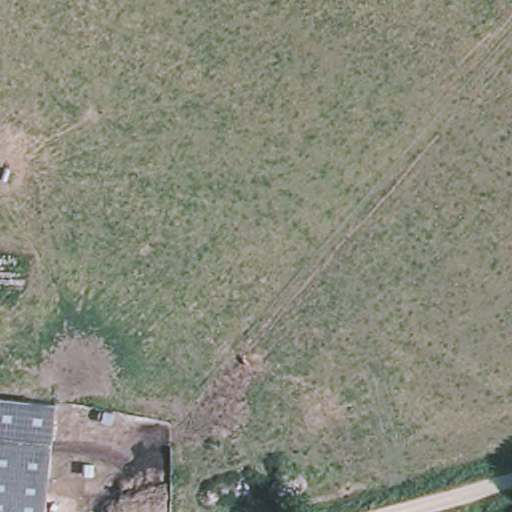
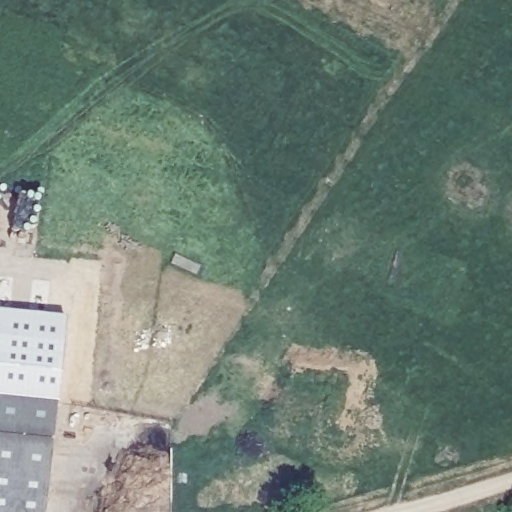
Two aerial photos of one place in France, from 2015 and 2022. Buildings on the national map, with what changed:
new [(0,403),(0,309),(68,315),(57,410),(0,403)]
unchanged [(0,420),(0,403),(57,410),(55,432),(0,420)]
unchanged [(55,432),(51,467),(0,462),(0,420),(55,432)]
unchanged [(51,467),(47,506),(46,512),(0,512),(0,462),(51,467)]

